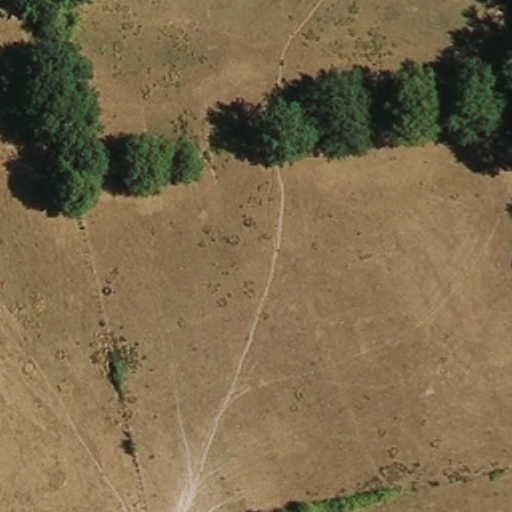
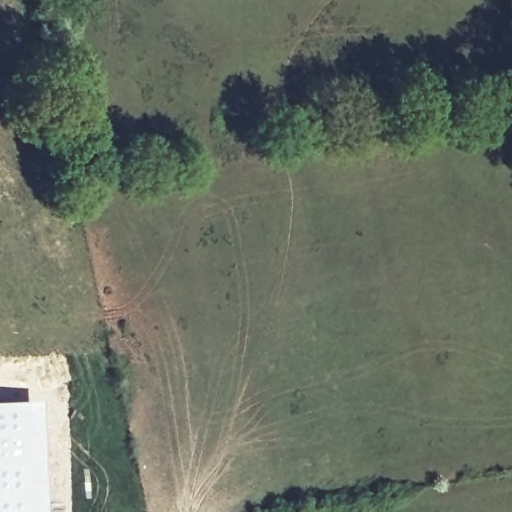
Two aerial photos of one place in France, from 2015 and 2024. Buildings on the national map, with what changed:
new [(50,490),(63,490),(63,485),(68,485),(71,512),(0,512),(0,403),(43,402),(50,490)]

